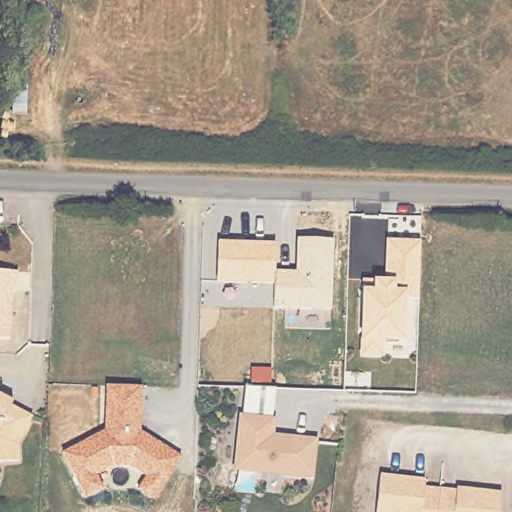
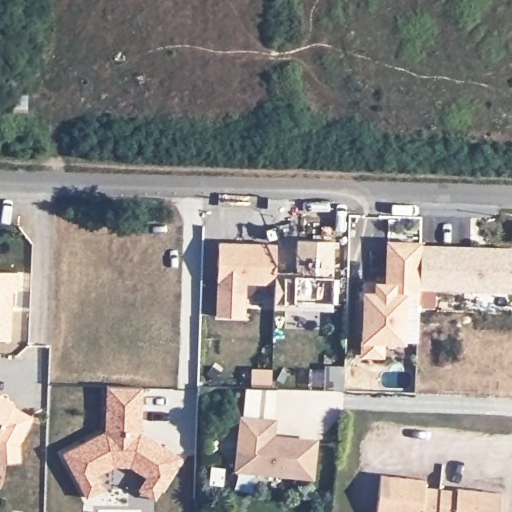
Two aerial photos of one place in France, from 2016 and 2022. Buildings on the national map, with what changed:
unchanged [(217,243),(274,244),(275,271),(295,272),(295,240),(332,241),(332,310),(275,310),(274,283),(216,282),(217,243)]
unchanged [(363,281),(384,280),(387,240),(421,242),(418,298),(406,298),(403,343),(384,343),(383,357),(360,356),(363,281)]
new [(512,257),(511,292),(435,291),(435,307),(419,307),(418,298),(421,242),(512,245),(512,257)]
unchanged [(17,267),(16,287),(9,286),(7,332),(0,332),(0,266),(17,267)]
unchanged [(131,487),(139,475),(123,465),(107,464),(90,473),(97,486),(80,495),(57,451),(99,428),(101,383),(136,385),(134,430),(175,456),(156,486),(148,498),(131,487)]
unchanged [(12,396),(9,401),(32,414),(18,437),(20,452),(0,456),(0,389),(12,396)]
unchanged [(275,420),(275,435),(317,440),(314,479),(233,472),(237,416),(275,420)]
unchanged [(426,471),(425,481),(459,485),(460,481),(505,485),(502,512),(377,512),(381,466),(426,471)]

